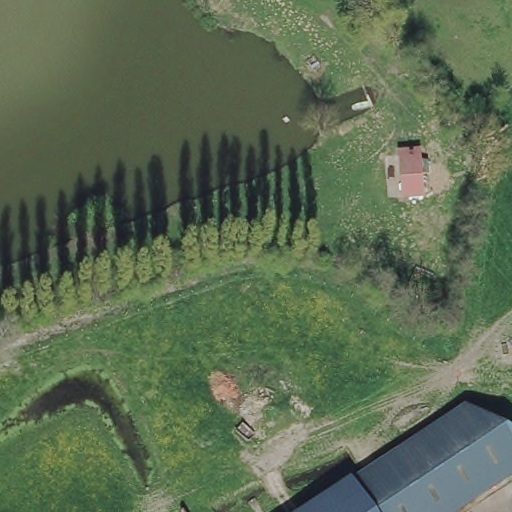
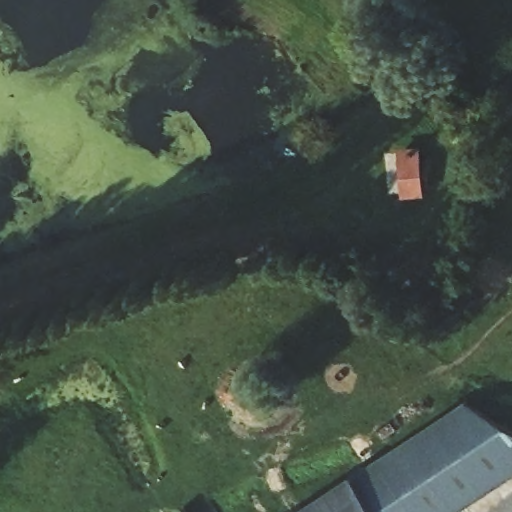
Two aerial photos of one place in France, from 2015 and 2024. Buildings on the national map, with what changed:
unchanged [(421,146),(424,198),(402,200),(398,147),(421,146)]
unchanged [(512,437),(512,469),(446,512),(370,512),(346,476),(459,402),(501,428),(512,437)]
unchanged [(293,512),(346,476),(370,512),(293,512)]

